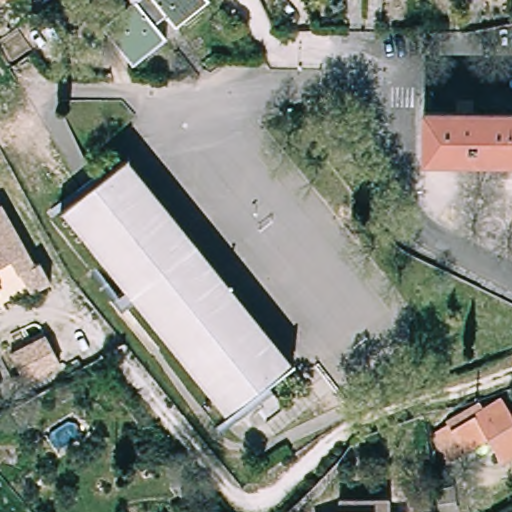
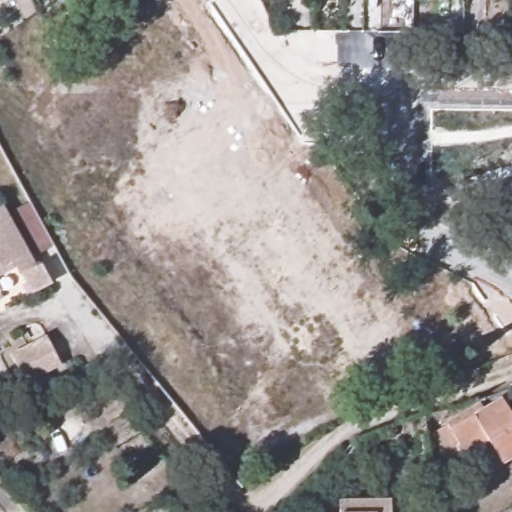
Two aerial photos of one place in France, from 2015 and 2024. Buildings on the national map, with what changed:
demolished [(131,6),(127,0),(205,0),(205,1),(173,26),(156,6),(147,12),(168,38),(135,66),(105,28),(131,6)]
demolished [(512,116),(512,160),(417,158),(418,114),(512,116)]
demolished [(125,159),(287,364),(221,413),(60,205),(125,159)]
unchanged [(6,207),(42,273),(50,269),(59,286),(35,299),(17,267),(0,277),(0,211),(6,207)]
unchanged [(5,295),(0,298),(0,285),(5,295)]
unchanged [(45,332),(63,363),(28,383),(11,351),(45,332)]
unchanged [(498,395),(508,410),(512,408),(512,453),(501,459),(487,436),(443,463),(426,434),(445,422),(443,418),(476,399),(480,406),(498,395)]
unchanged [(452,512),(437,512),(434,489),(453,487),(456,511),(452,512)]
unchanged [(330,500),(399,497),(399,512),(330,512),(330,500)]

